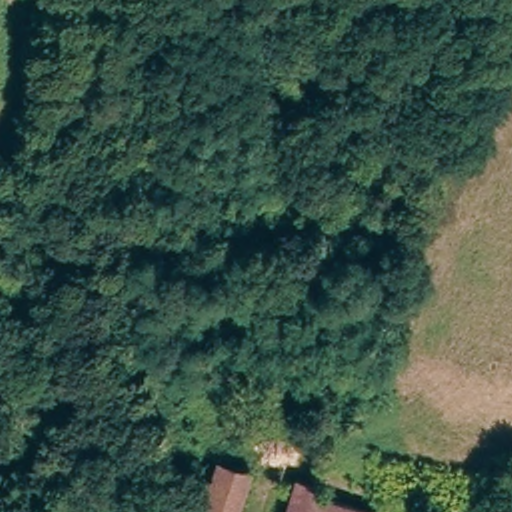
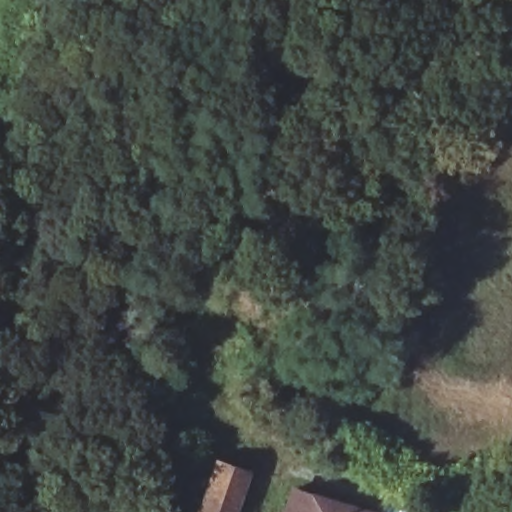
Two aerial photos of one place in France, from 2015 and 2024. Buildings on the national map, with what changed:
unchanged [(283,452),(280,422),(286,422),(286,413),(297,413),(298,421),(305,421),(308,450),(283,452)]
unchanged [(245,475),(233,512),(197,512),(212,465),(245,475)]
unchanged [(318,488),(316,496),(365,512),(287,512),(297,481),(318,488)]

